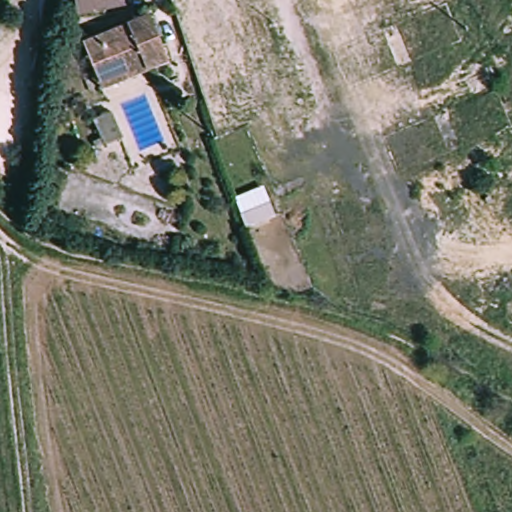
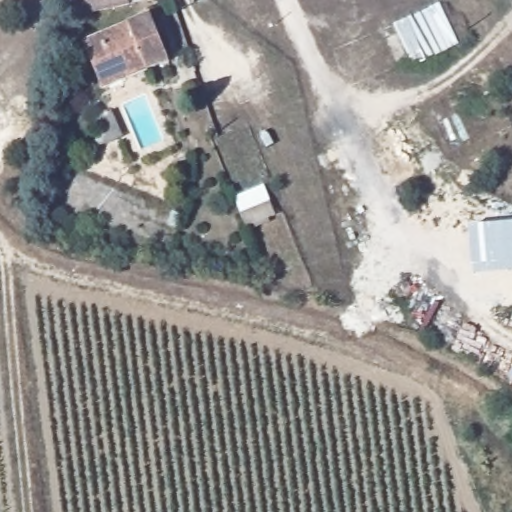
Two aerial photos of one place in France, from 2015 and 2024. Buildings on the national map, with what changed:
unchanged [(75,11),(73,0),(127,0),(127,1),(75,11)]
unchanged [(128,80),(125,70),(94,78),(88,53),(85,44),(154,23),(157,31),(170,69),(152,74),(128,80)]
unchanged [(124,138),(104,147),(93,120),(112,111),(124,138)]
unchanged [(277,217),(248,229),(235,197),(264,185),(277,217)]
new [(469,227),(512,225),(512,273),(475,276),(469,227)]

